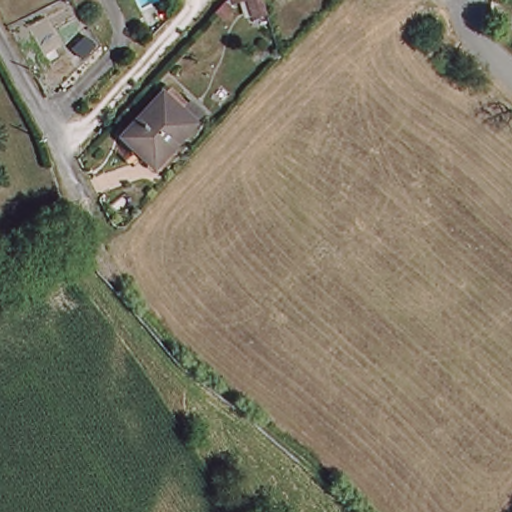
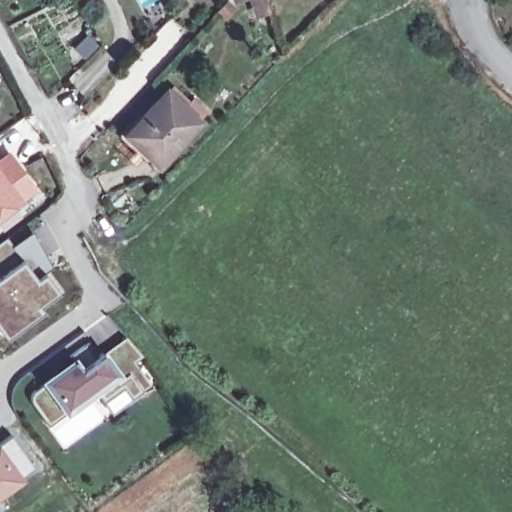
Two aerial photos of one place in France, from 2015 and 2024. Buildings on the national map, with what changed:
unchanged [(231,0),(239,0),(232,2),(231,0)]
unchanged [(256,11),(252,0),(264,0),(267,9),(256,11)]
unchanged [(126,137),(166,95),(171,90),(187,105),(182,110),(183,111),(192,102),(205,115),(197,124),(159,165),(152,173),(121,143),(126,137)]
new [(12,151),(37,186),(0,212),(0,160),(12,151)]
new [(24,321),(21,316),(6,327),(0,319),(0,240),(7,235),(13,243),(28,232),(51,265),(44,270),(57,290),(38,303),(42,309),(24,321)]
new [(126,336),(143,355),(135,361),(152,385),(134,398),(125,386),(105,401),(95,387),(69,407),(71,409),(48,425),(31,401),(30,396),(32,392),(74,362),(69,355),(86,344),(96,358),(126,336)]
new [(9,433),(32,465),(0,488),(0,439),(9,433)]

